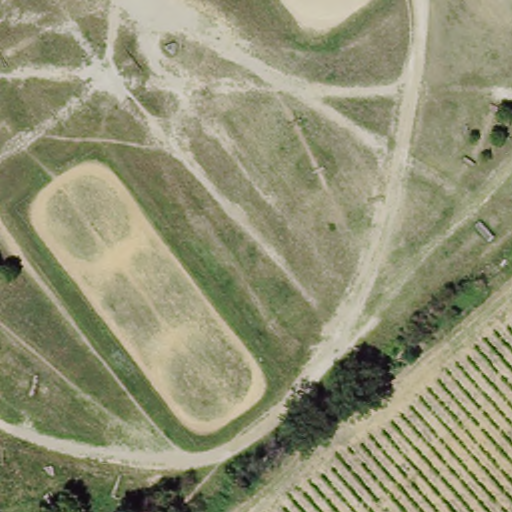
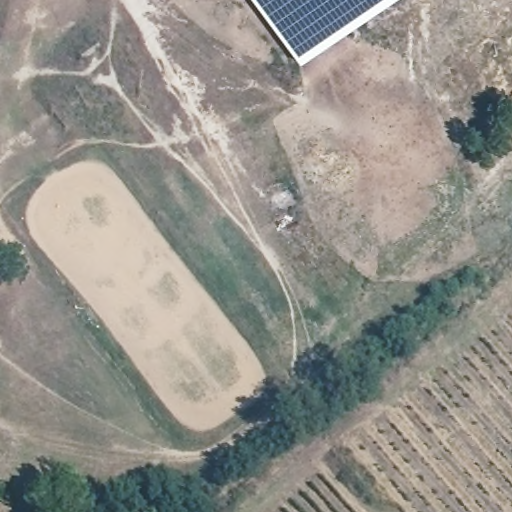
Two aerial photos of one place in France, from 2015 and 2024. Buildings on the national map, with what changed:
new [(252,0),(387,0),(300,64),(252,0)]

